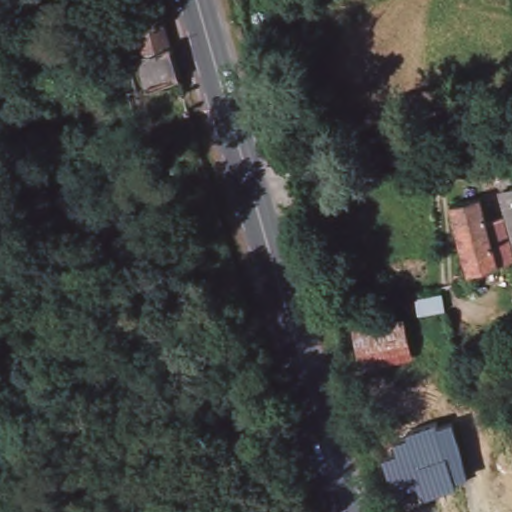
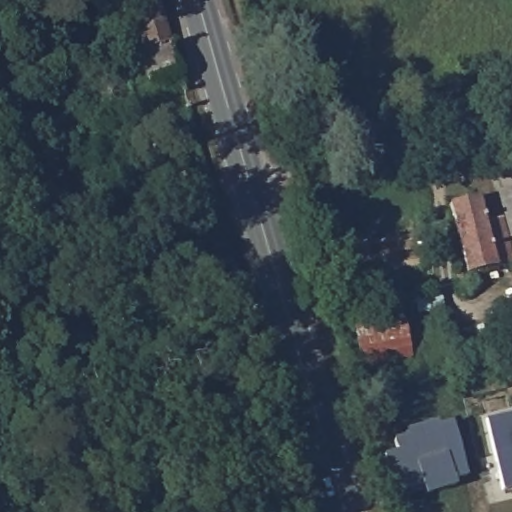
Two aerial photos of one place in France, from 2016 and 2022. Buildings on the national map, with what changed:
unchanged [(144,51),(137,24),(150,20),(144,0),(159,0),(164,15),(181,75),(149,85),(140,52),(144,51)]
unchanged [(512,260),(510,260),(494,193),(512,188),(512,260)]
unchanged [(474,199),(481,224),(496,220),(507,261),(462,273),(445,206),(474,199)]
unchanged [(241,292),(245,306),(233,308),(229,295),(241,292)]
unchanged [(402,317),(410,358),(360,368),(351,326),(402,317)]
unchanged [(491,338),(497,362),(469,369),(466,360),(454,362),(450,348),(462,345),(491,338)]
new [(512,413),(512,488),(503,490),(486,420),(512,413)]
unchanged [(454,480),(455,485),(422,494),(419,484),(394,493),(382,456),(398,451),(394,440),(409,435),(407,430),(436,422),(438,427),(452,422),(468,476),(454,480)]

